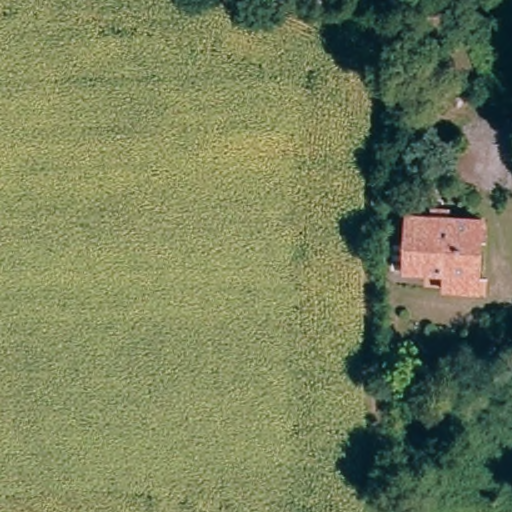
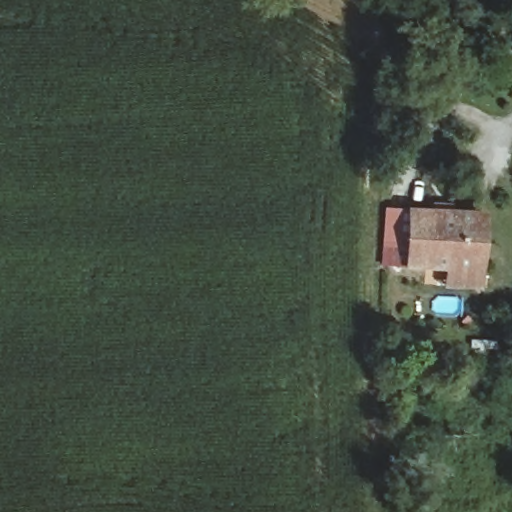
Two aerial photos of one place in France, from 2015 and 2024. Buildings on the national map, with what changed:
unchanged [(438,297),(438,263),(408,261),(409,207),(479,212),(478,287),(452,286),(452,297),(438,297)]

